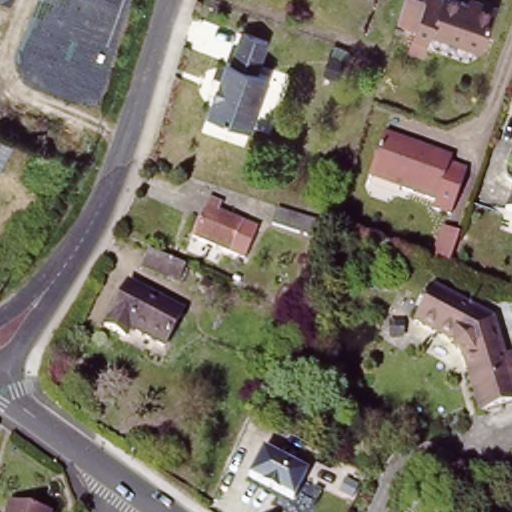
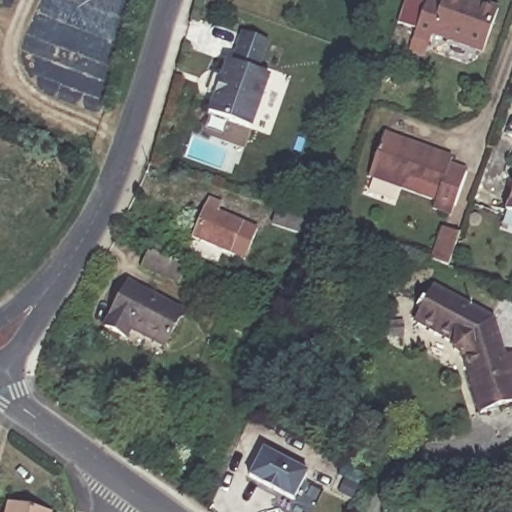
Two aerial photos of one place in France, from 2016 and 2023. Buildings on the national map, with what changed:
unchanged [(432,36),(430,43),(415,37),(418,25),(403,20),(409,0),(443,0),(446,1),(446,0),(454,0),(468,5),(470,0),(480,3),(497,10),(482,53),(432,36)]
unchanged [(266,40),(256,72),(268,76),(251,128),(208,113),(225,60),(230,62),(240,31),(266,40)]
unchanged [(455,166),(469,172),(453,214),(435,208),(437,200),(374,176),(388,138),(390,134),(422,145),(457,158),(455,166)]
unchanged [(505,210),(512,189),(512,212),(505,210)]
unchanged [(221,212),(258,229),(245,258),(193,236),(210,199),(224,205),(221,212)]
unchanged [(328,243),(272,226),(277,210),(332,229),(328,243)]
unchanged [(434,258),(445,228),(462,235),(451,263),(434,258)]
unchanged [(144,269),(151,252),(187,267),(180,284),(144,269)]
unchanged [(125,339),(104,328),(129,285),(182,314),(164,347),(130,329),(125,339)]
unchanged [(505,360),(512,358),(512,409),(478,419),(460,349),(417,324),(437,290),(495,324),(505,360)]
unchanged [(308,471),(294,501),(248,477),(262,447),(308,471)]
unchanged [(26,512),(3,512),(4,507),(26,512)]

